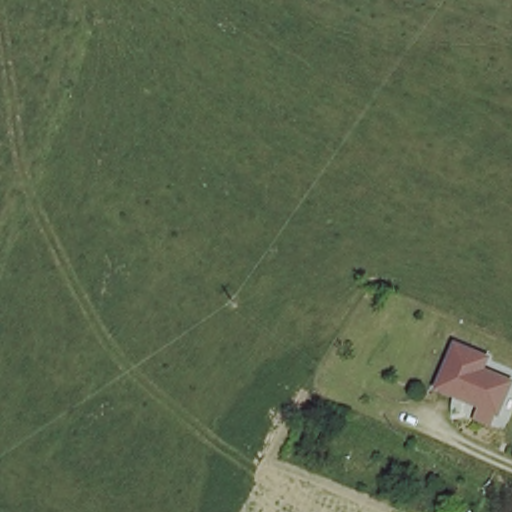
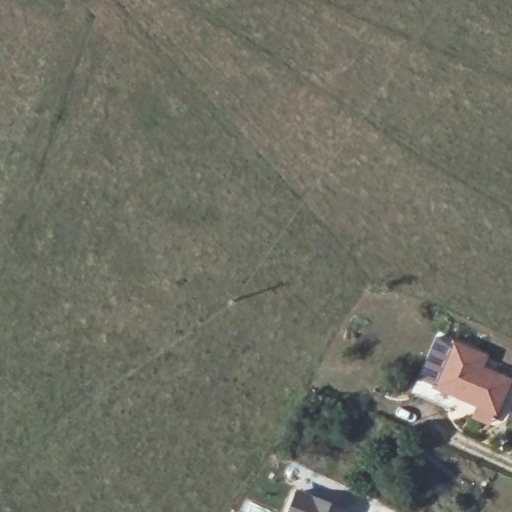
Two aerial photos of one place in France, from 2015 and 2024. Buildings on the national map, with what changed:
unchanged [(456,347),(489,360),(485,370),(512,381),(497,417),(436,392),(456,347)]
new [(296,488),(350,511),(350,512),(287,512),(296,488)]

